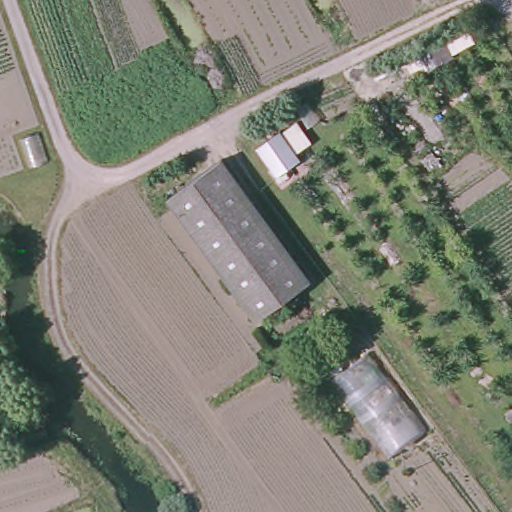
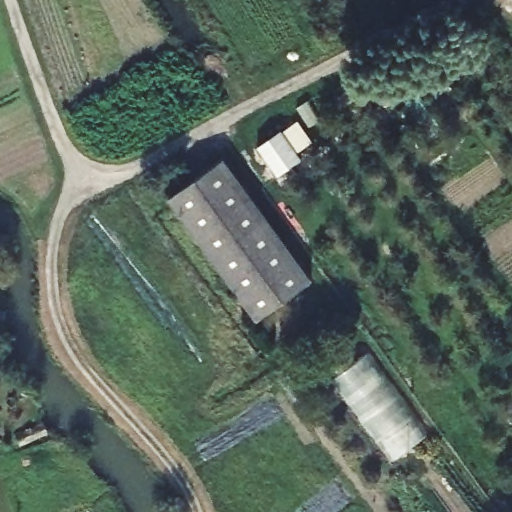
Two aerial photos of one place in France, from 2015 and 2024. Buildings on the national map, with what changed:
unchanged [(288,137),(310,165),(285,181),(263,153),(288,137)]
unchanged [(263,323),(173,200),(226,164),(315,284),(263,323)]
unchanged [(332,380),(367,351),(431,434),(392,463),(332,380)]

